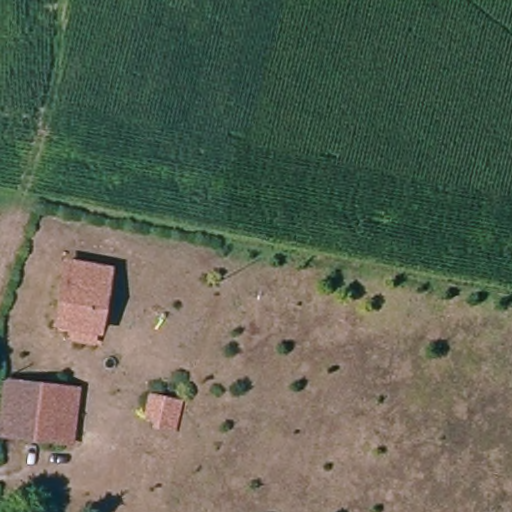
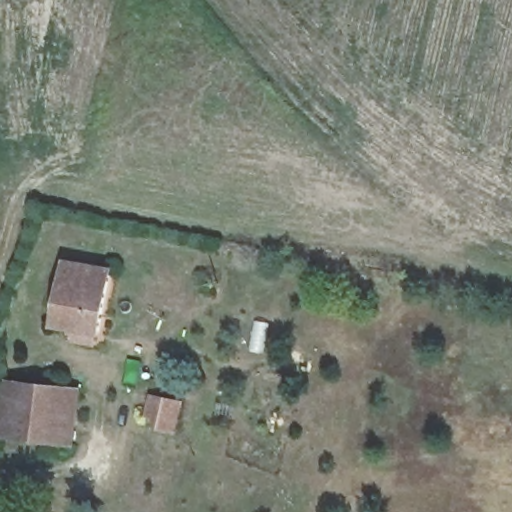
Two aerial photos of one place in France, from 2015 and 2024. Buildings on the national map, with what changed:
unchanged [(101,331),(58,327),(63,268),(107,273),(101,331)]
unchanged [(0,430),(8,381),(54,388),(72,390),(66,440),(49,438),(0,430)]

